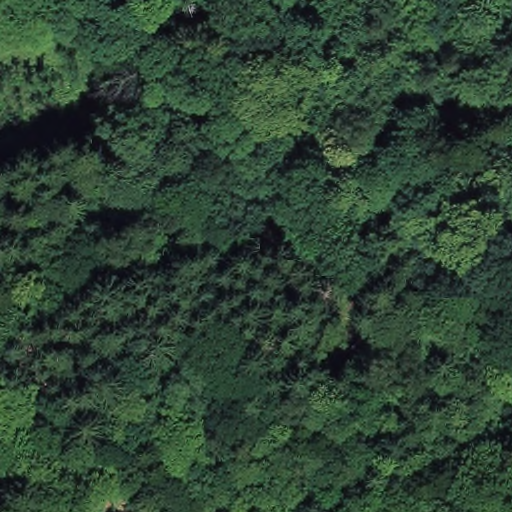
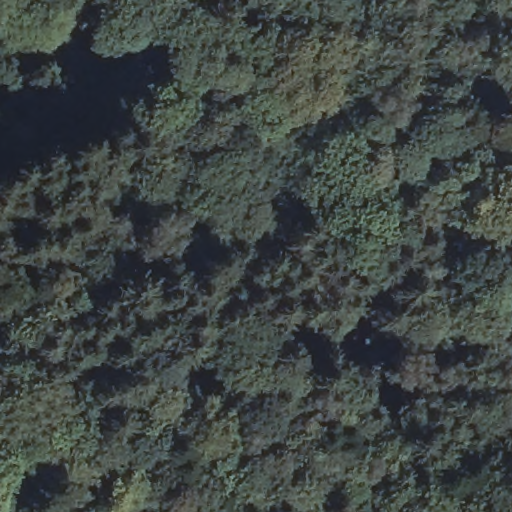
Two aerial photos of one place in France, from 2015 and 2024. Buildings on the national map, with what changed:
unchanged [(134,349),(144,371),(110,385),(102,363),(134,349)]

